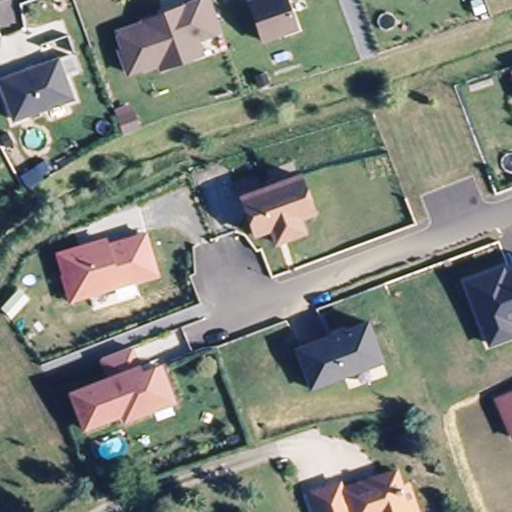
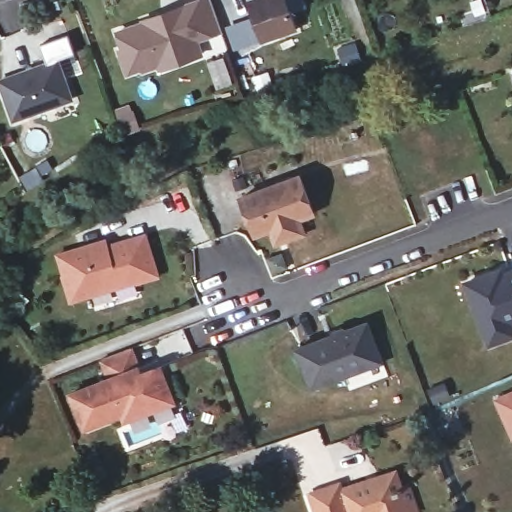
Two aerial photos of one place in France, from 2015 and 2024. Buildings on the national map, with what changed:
unchanged [(162,67),(160,63),(145,68),(144,66),(129,71),(121,49),(125,48),(119,31),(146,21),(145,19),(198,0),(213,0),(216,9),(223,29),(198,38),(203,53),(188,58),(162,67)]
unchanged [(289,0),(298,27),(264,40),(250,1),(252,0),(289,0)]
unchanged [(0,89),(0,83),(45,66),(38,48),(66,37),(73,56),(56,62),(71,101),(12,123),(0,89)]
unchanged [(276,242),(271,228),(255,234),(241,197),(299,174),(313,212),(299,217),(304,231),(276,242)]
unchanged [(64,279),(65,279),(59,258),(98,246),(102,254),(109,252),(108,248),(146,236),(160,279),(138,286),(138,284),(72,305),(64,279)]
unchanged [(512,339),(491,347),(468,286),(490,277),(497,281),(512,275),(512,325),(511,325),(512,328),(512,339)]
unchanged [(373,331),(384,362),(382,368),(349,380),(350,385),(317,397),(302,358),(373,331)]
unchanged [(154,414),(126,424),(124,417),(87,432),(73,396),(111,381),(104,362),(105,361),(133,351),(143,377),(162,370),(171,394),(175,406),(154,414)]
unchanged [(512,389),(512,439),(493,398),(512,389)]
unchanged [(315,496),(343,485),(345,490),(406,468),(419,507),(403,512),(321,512),(315,496)]

